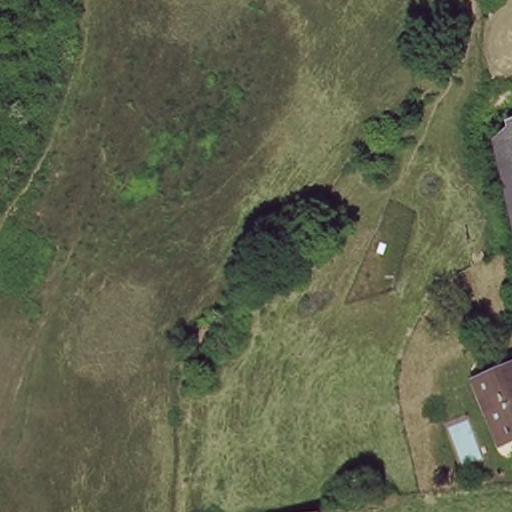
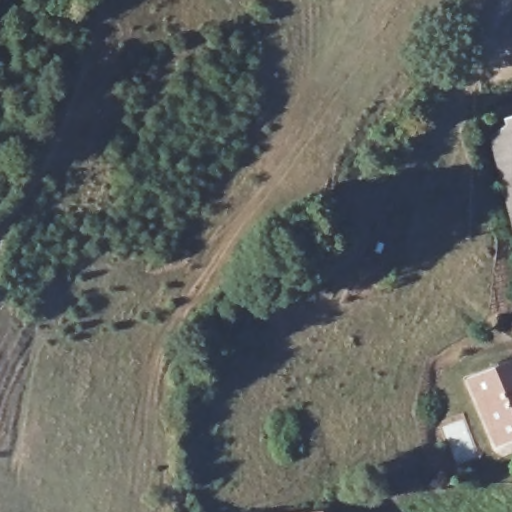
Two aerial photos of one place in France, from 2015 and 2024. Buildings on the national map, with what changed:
unchanged [(512,113),(512,171),(508,115),(512,113)]
unchanged [(512,210),(497,211),(493,125),(508,115),(512,171),(512,210)]
unchanged [(511,360),(512,363),(512,438),(494,447),(463,385),(511,360)]

